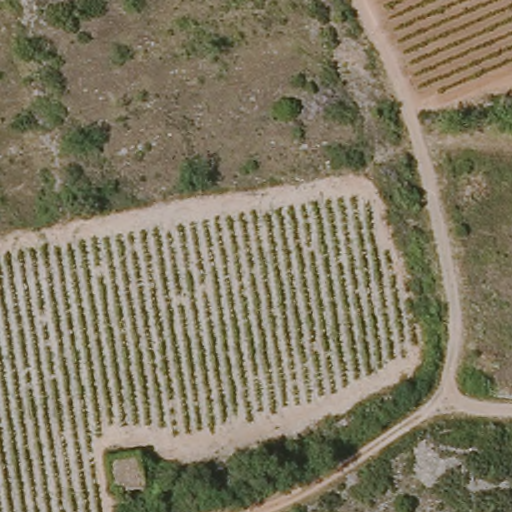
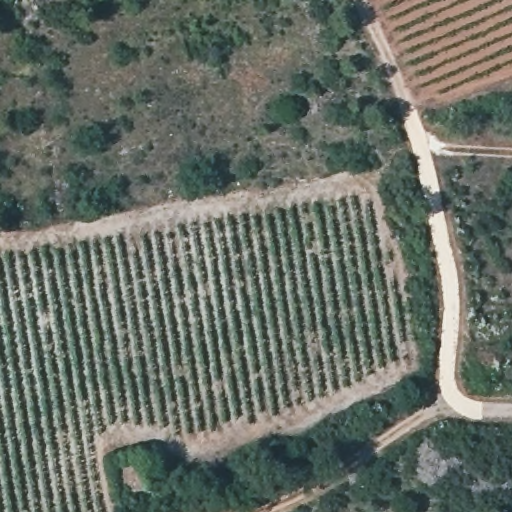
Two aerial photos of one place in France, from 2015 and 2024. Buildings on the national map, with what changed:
unchanged [(143,474),(113,480),(107,452),(138,448),(143,474)]

